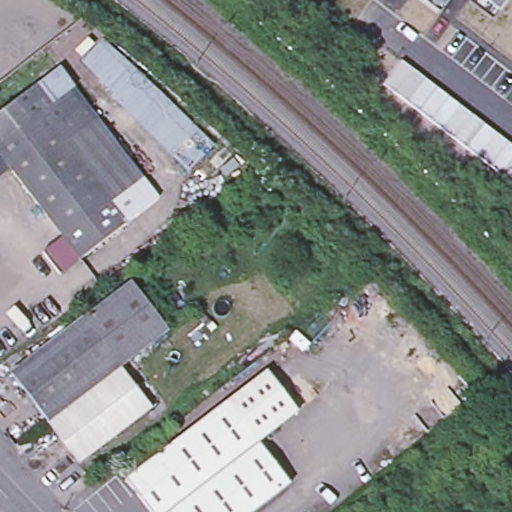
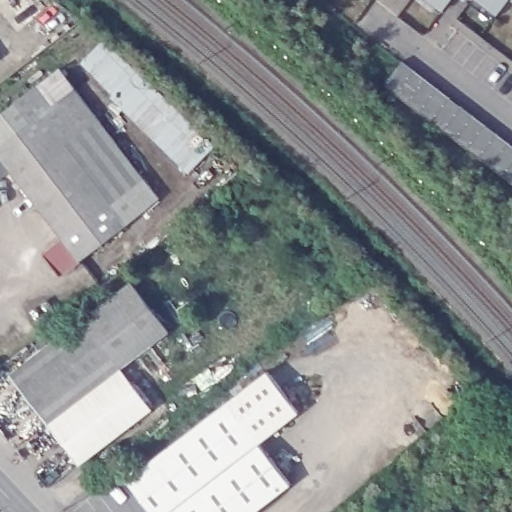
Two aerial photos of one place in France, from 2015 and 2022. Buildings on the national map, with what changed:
unchanged [(443,6),(442,10),(428,0),(447,0),(443,6)]
unchanged [(499,10),(493,20),(469,0),(507,0),(499,10)]
unchanged [(187,174),(112,96),(85,68),(103,42),(215,144),(187,174)]
unchanged [(386,82),(402,61),(512,145),(512,180),(386,82)]
unchanged [(9,170),(6,172),(0,176),(0,114),(57,69),(142,182),(109,210),(122,226),(79,262),(59,277),(42,255),(62,240),(9,170)]
unchanged [(82,315),(130,278),(166,327),(119,363),(82,315)]
unchanged [(47,418),(10,370),(82,315),(119,363),(47,418)]
unchanged [(79,461),(47,418),(119,363),(151,406),(79,461)]
unchanged [(296,416),(256,447),(287,489),(258,512),(144,512),(124,486),(265,376),(296,416)]

